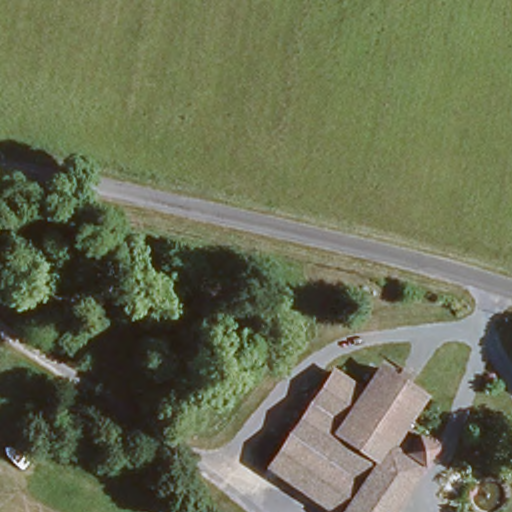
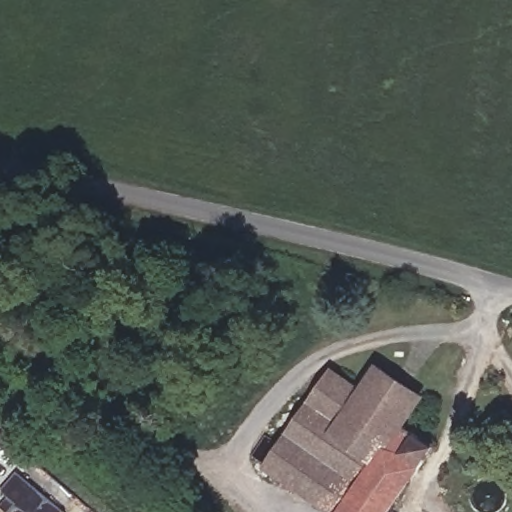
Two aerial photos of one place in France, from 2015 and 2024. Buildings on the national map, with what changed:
unchanged [(269,457),(282,438),(334,365),(361,384),(377,360),(421,391),(402,418),(434,440),(385,510),(387,512),(339,512),(343,506),(269,457)]
new [(0,492),(0,488),(14,471),(62,511),(61,512),(5,512),(13,503),(0,492)]
new [(1,512),(0,512),(0,511),(1,512)]

